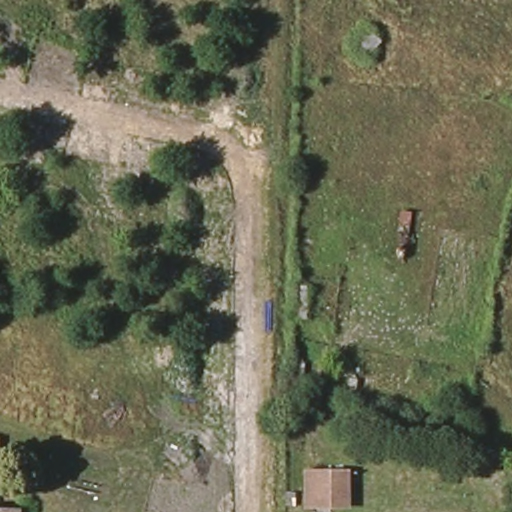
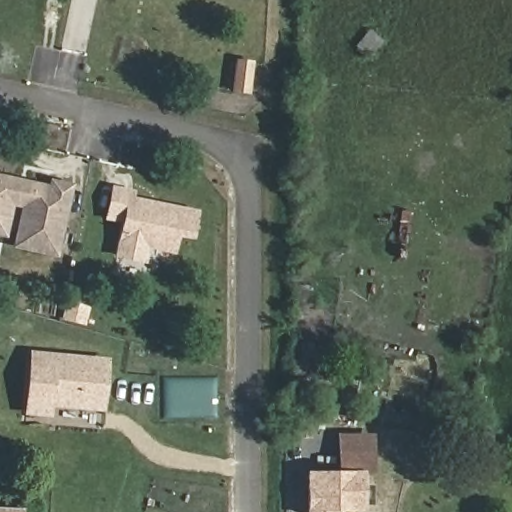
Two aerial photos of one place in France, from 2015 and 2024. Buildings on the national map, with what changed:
new [(10,247),(19,209),(11,206),(6,238),(0,237),(0,174),(47,185),(49,179),(72,184),(58,257),(10,247)]
new [(190,235),(174,233),(170,250),(145,245),(142,260),(115,256),(127,201),(194,214),(190,235)]
new [(102,408),(57,405),(57,401),(50,401),(48,414),(25,412),(30,366),(50,367),(52,355),(105,360),(102,408)]
new [(370,433),(368,467),(354,466),(356,509),(328,508),(328,512),(298,512),(298,468),(332,465),(333,431),(370,433)]
demolished [(312,508),(313,475),(335,475),(334,510),(312,508)]
unchanged [(0,510),(24,511),(24,512),(0,512),(0,510)]

